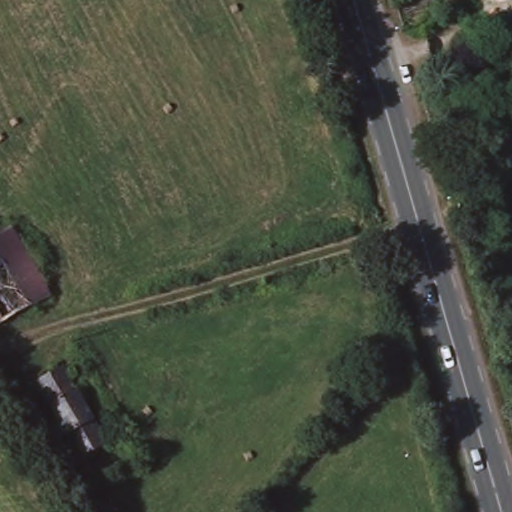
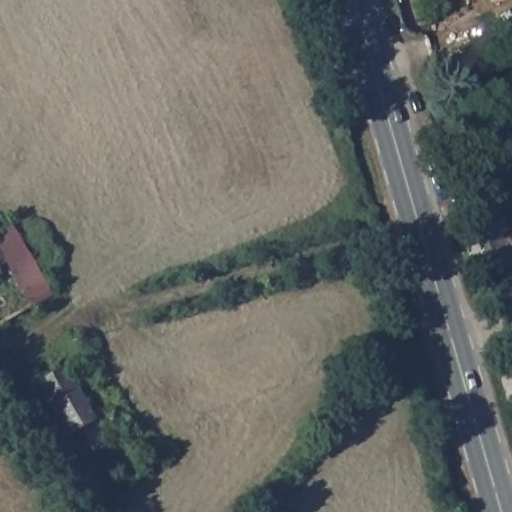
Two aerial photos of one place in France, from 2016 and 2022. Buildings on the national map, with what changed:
unchanged [(11,227),(19,240),(28,234),(39,253),(29,259),(34,266),(44,260),(61,289),(0,325),(0,233),(11,227)]
unchanged [(59,367),(102,442),(76,457),(71,447),(59,453),(51,441),(48,443),(38,424),(52,416),(33,382),(59,367)]

